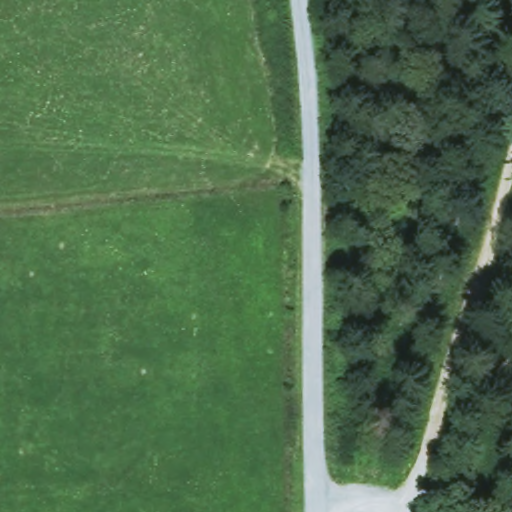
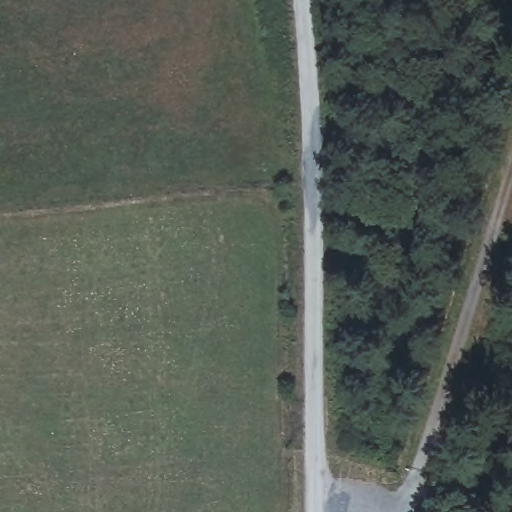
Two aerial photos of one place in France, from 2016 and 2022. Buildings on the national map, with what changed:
unchanged [(400,438),(390,433),(399,413),(409,416),(400,438)]

